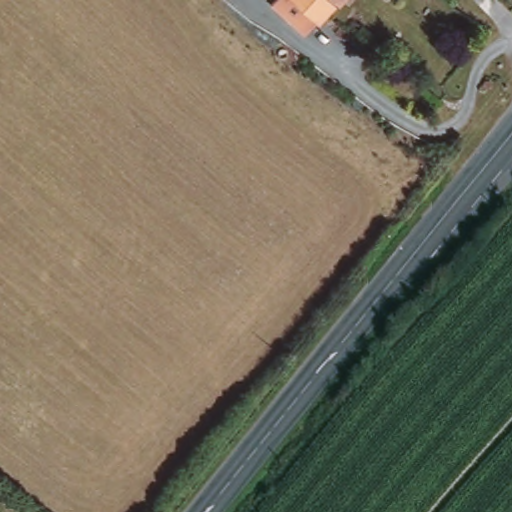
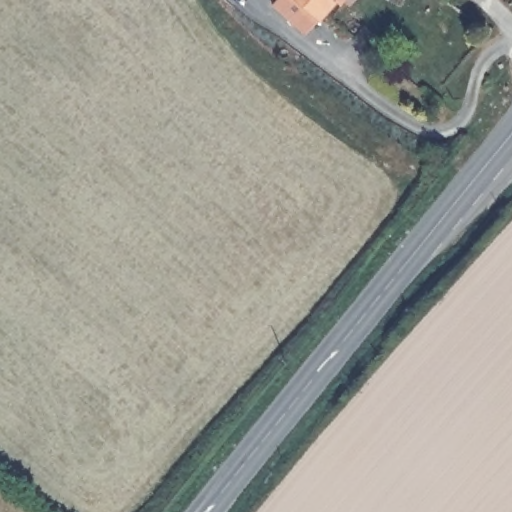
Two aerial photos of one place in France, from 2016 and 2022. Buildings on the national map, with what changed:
unchanged [(271,5),(275,0),(342,0),(322,21),(309,35),(271,5)]

